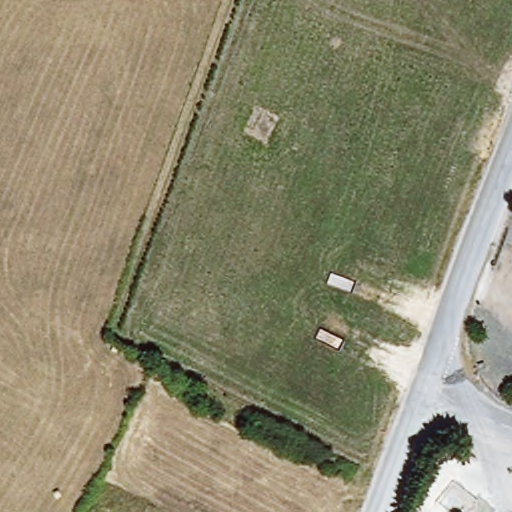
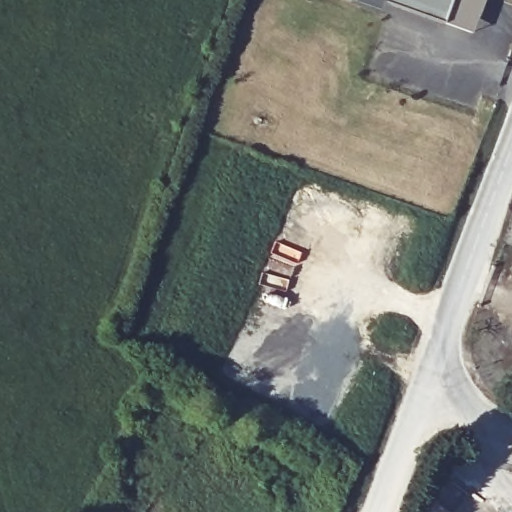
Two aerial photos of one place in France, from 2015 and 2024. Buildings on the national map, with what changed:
new [(448,22),(380,0),(455,0),(448,22)]
new [(455,0),(487,0),(476,31),(448,22),(455,0)]

